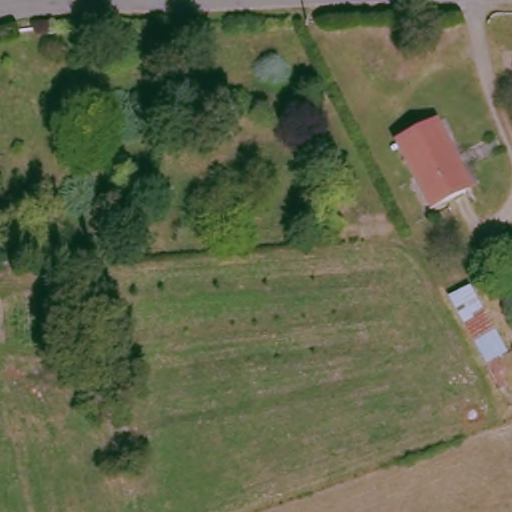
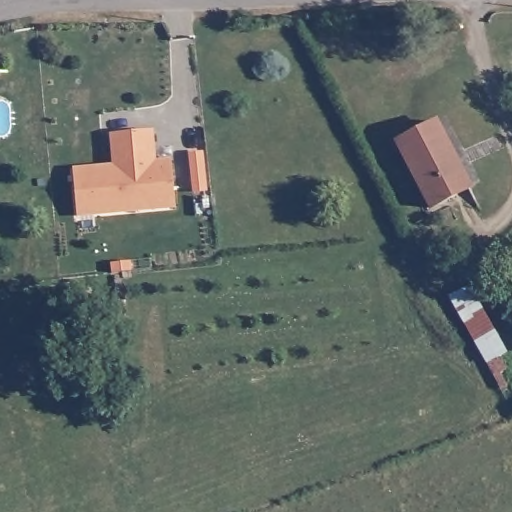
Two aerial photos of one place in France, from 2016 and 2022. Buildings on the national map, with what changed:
unchanged [(435,122),(470,186),(430,207),(397,144),(435,122)]
new [(77,217),(73,167),(111,165),(109,134),(153,130),(156,160),(171,159),(175,210),(77,217)]
unchanged [(473,284),(512,360),(502,368),(511,383),(502,390),(447,295),(473,284)]

